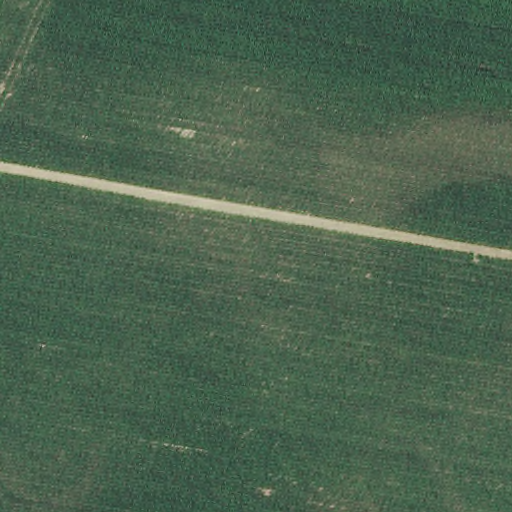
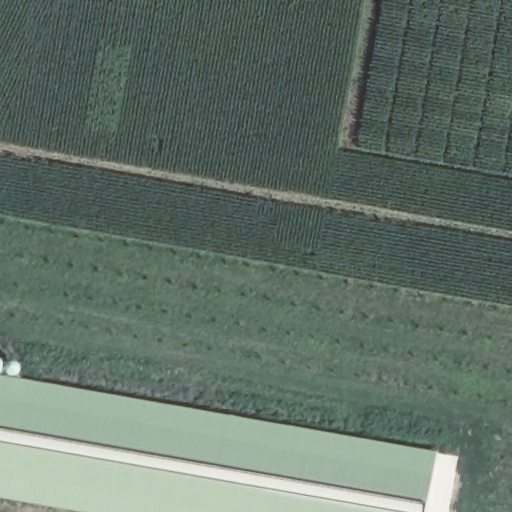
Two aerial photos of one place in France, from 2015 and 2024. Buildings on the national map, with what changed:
new [(450,512),(71,512),(0,499),(0,374),(459,459),(450,512)]

